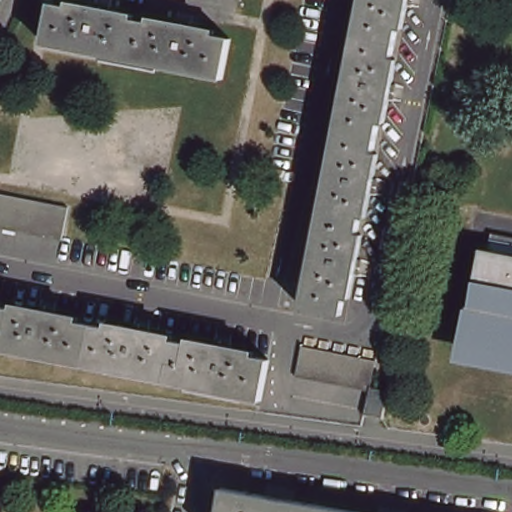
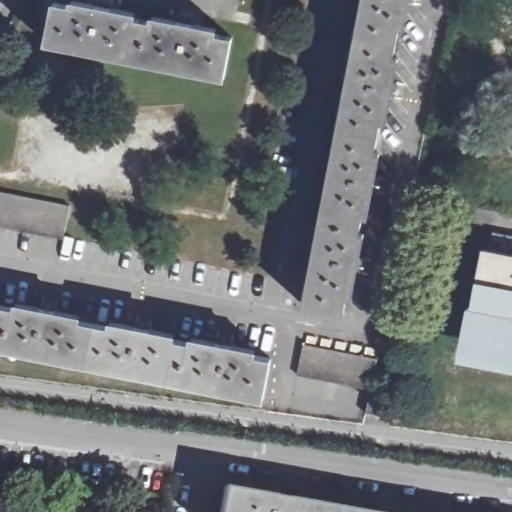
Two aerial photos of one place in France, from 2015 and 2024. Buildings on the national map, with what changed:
unchanged [(413,10),(410,9),(409,14),(405,14),(392,81),(396,82),(395,87),(398,88),(395,106),(392,105),(391,110),(388,109),(376,173),(379,174),(377,180),(381,181),(378,197),(375,197),(373,203),(371,202),(360,256),(363,256),(363,261),(366,262),(363,277),(360,277),(358,283),(355,282),(348,318),(308,312),(325,225),(353,57),(364,0),(415,0),(413,10)]
unchanged [(93,11),(95,7),(100,8),(102,4),(120,8),(120,12),(123,12),(122,17),(169,27),(170,24),(175,25),(175,21),(192,25),(192,29),(196,30),(195,34),(233,42),(225,81),(47,42),(57,2),(93,11)]
unchanged [(62,238),(0,225),(0,193),(69,207),(62,238)]
unchanged [(467,356),(491,240),(512,244),(512,365),(467,356)]
unchanged [(39,306),(43,307),(45,303),(62,307),(62,310),(68,312),(68,316),(140,330),(142,327),(147,327),(147,323),(164,327),(163,331),(168,332),(169,335),(220,346),(222,342),(227,343),(227,340),(242,342),(242,347),(248,348),(247,351),(282,358),(275,398),(158,376),(0,345),(0,302),(38,309),(39,306)]
unchanged [(382,419),(360,416),(365,388),(295,375),(300,346),(332,351),(372,358),(365,387),(388,391),(382,419)]
unchanged [(264,492),(267,483),(294,487),(292,497),(375,512),(219,512),(224,485),(264,492)]
unchanged [(405,507),(404,512),(375,512),(377,502),(405,507)]

